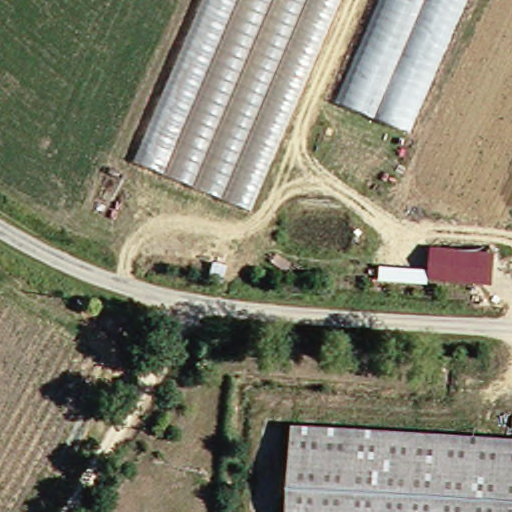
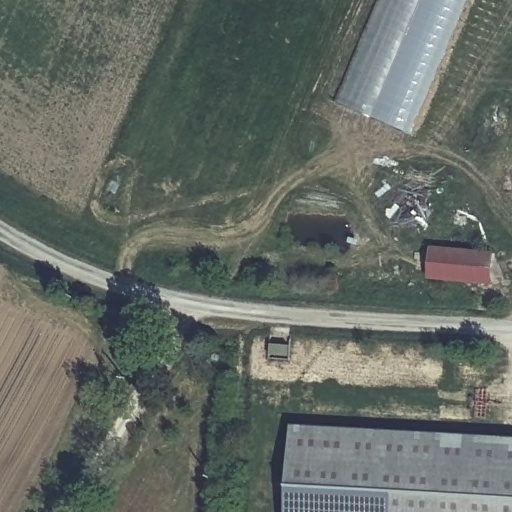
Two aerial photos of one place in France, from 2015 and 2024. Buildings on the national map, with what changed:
demolished [(245,212),(131,167),(202,0),(335,0),(245,212)]
demolished [(402,134),(328,103),(373,0),(458,0),(402,134)]
new [(411,136),(334,105),(378,0),(468,0),(411,136)]
unchanged [(429,251),(491,254),(489,287),(427,282),(429,251)]
unchanged [(512,512),(282,512),(289,422),(512,438),(512,512)]

